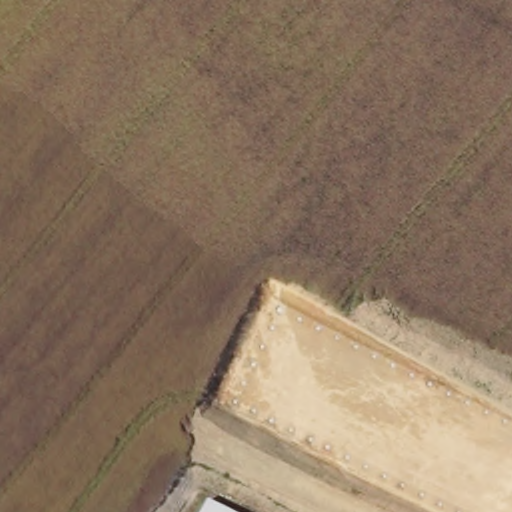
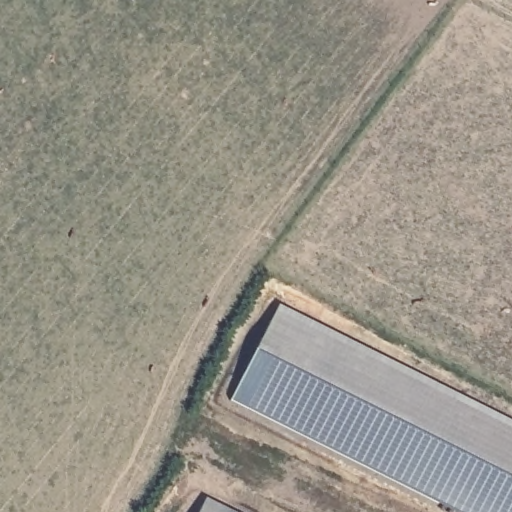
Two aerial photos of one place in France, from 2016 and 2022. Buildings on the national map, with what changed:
new [(279,304),(512,422),(512,512),(453,512),(231,399),(279,304)]
unchanged [(201,512),(207,498),(235,512),(201,512)]

